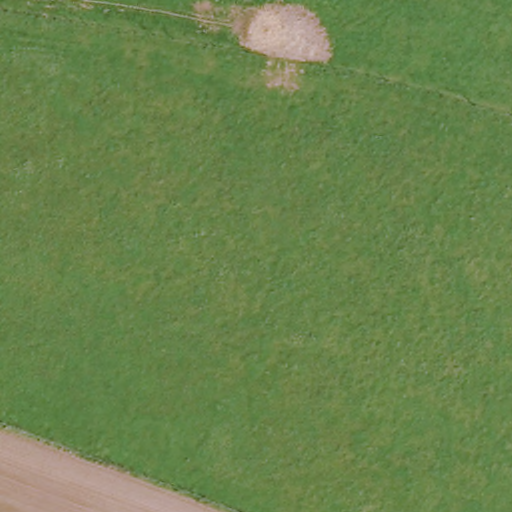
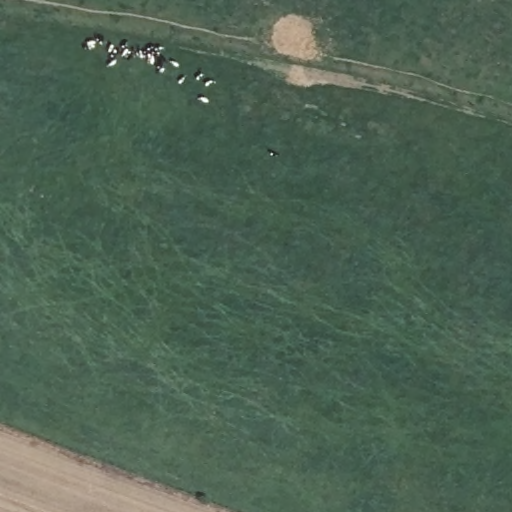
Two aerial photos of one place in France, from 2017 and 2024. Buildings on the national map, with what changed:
[]

